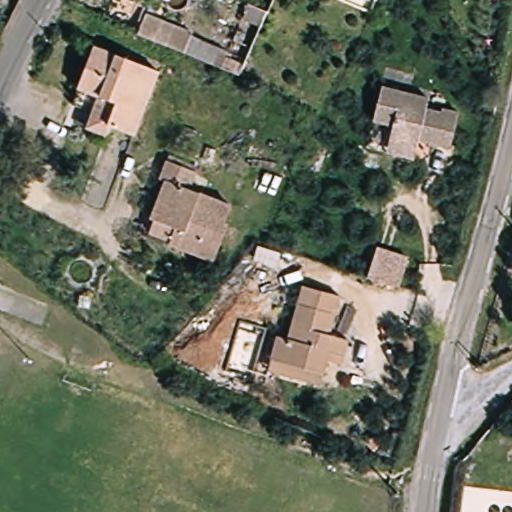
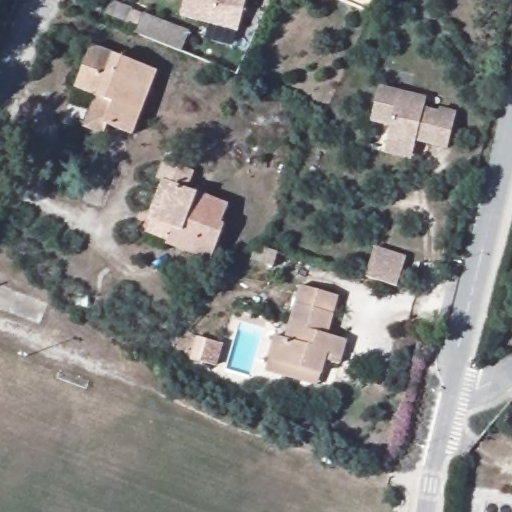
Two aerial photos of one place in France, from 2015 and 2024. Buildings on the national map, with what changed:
new [(183,15),(186,0),(246,0),(241,27),(183,15)]
unchanged [(146,16),(224,48),(217,67),(137,36),(146,16)]
unchanged [(86,47),(150,65),(133,128),(111,123),(117,99),(74,86),(86,47)]
unchanged [(425,99),(423,111),(440,115),(441,111),(461,117),(453,149),(414,137),(412,146),(381,136),(385,116),(370,111),(377,85),(425,99)]
unchanged [(117,99),(111,123),(110,129),(91,124),(94,109),(69,103),(74,86),(117,99)]
unchanged [(132,235),(140,214),(145,217),(160,179),(156,178),(161,163),(191,173),(185,190),(222,204),(212,231),(217,232),(205,263),(160,245),(135,236),(132,235)]
unchanged [(406,276),(382,270),(374,268),(382,239),(413,247),(406,276)]
unchanged [(276,376),(265,373),(271,337),(284,340),(296,288),(333,297),(318,373),(316,384),(276,376)]

